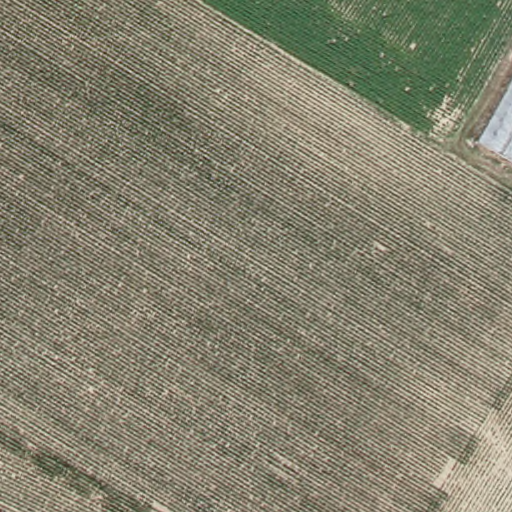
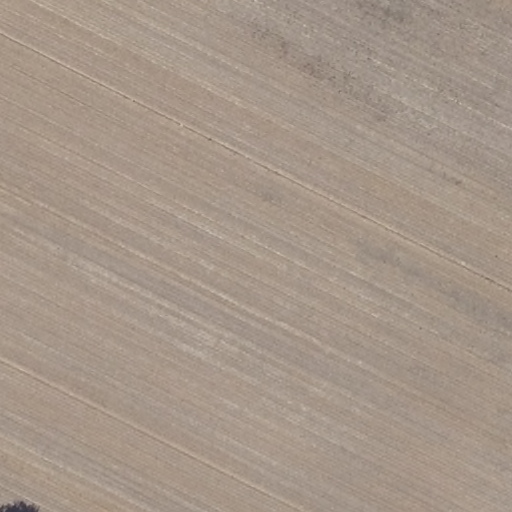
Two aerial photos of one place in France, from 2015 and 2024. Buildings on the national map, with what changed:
demolished [(478,141),(512,78),(512,160),(478,141)]

